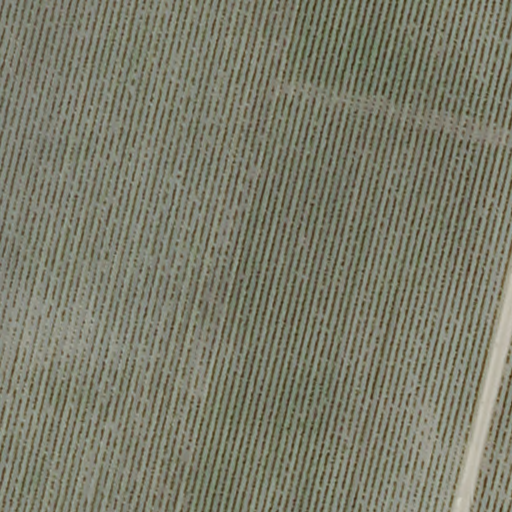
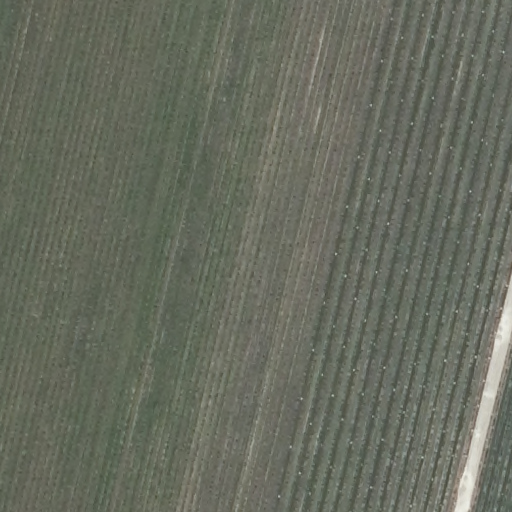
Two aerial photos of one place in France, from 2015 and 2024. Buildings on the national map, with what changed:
[]

